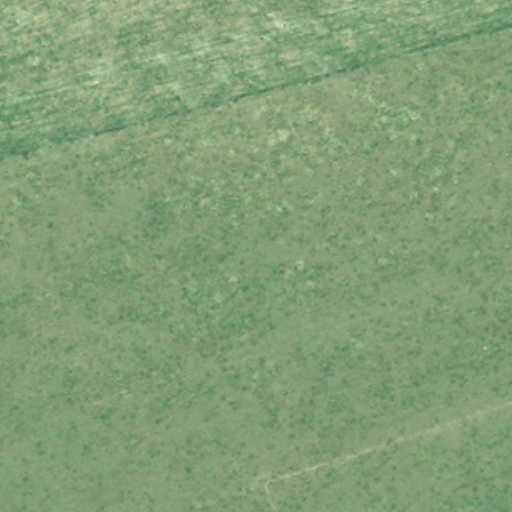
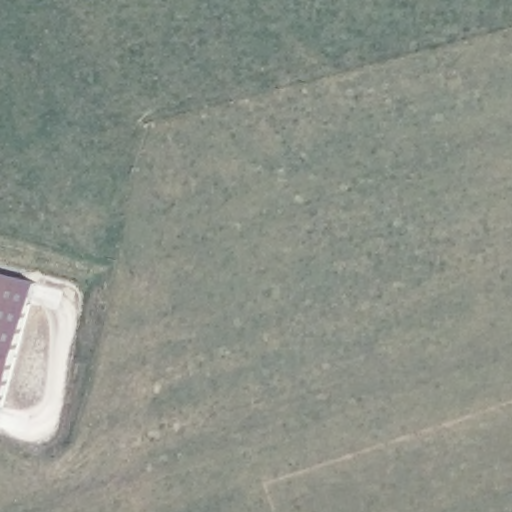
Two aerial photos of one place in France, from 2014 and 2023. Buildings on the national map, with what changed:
new [(34,281),(0,411),(0,272),(34,281)]

